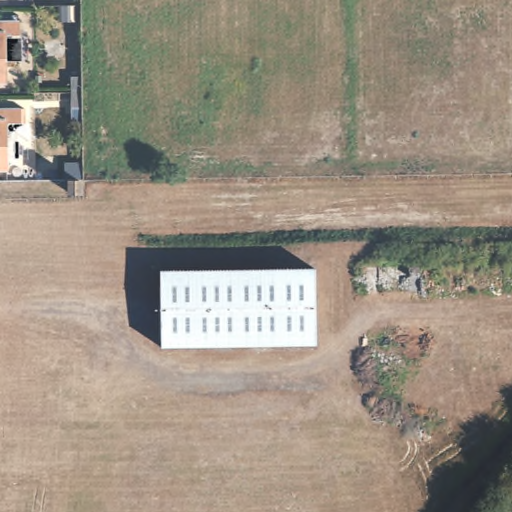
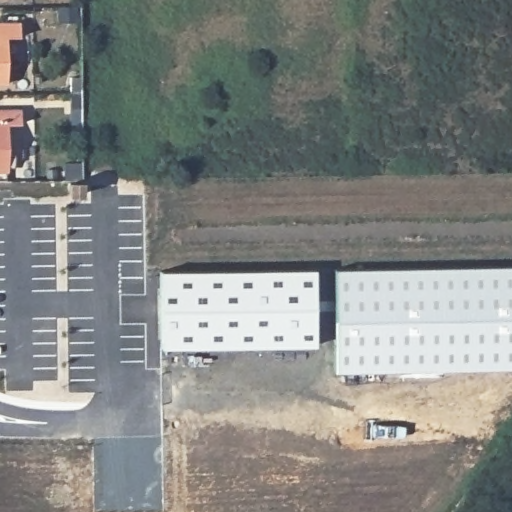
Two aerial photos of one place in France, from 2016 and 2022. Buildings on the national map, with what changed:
unchanged [(15,26),(14,41),(1,41),(2,88),(0,88),(0,26),(15,26)]
unchanged [(71,108),(71,92),(71,77),(81,78),(81,92),(81,108),(71,108)]
unchanged [(15,113),(16,128),(2,128),(3,175),(0,175),(0,114),(15,113)]
new [(512,369),(336,372),(333,268),(512,266),(512,369)]
unchanged [(311,268),(310,347),(156,350),(156,270),(311,268)]

